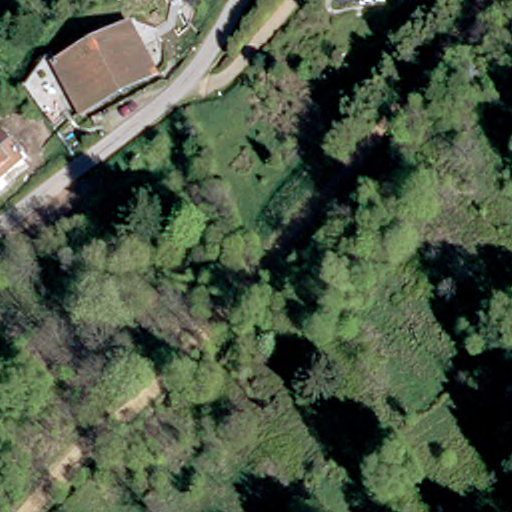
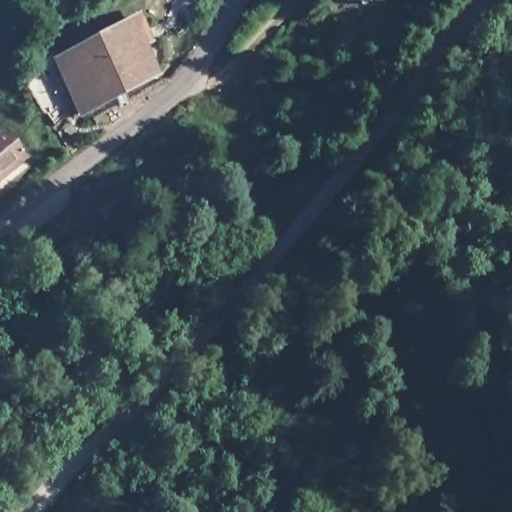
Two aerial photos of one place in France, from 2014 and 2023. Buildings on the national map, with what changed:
unchanged [(355,2),(354,0),(368,0),(355,2)]
unchanged [(131,20),(158,73),(108,98),(110,102),(85,114),(57,60),(131,20)]
unchanged [(0,172),(0,138),(13,161),(0,172)]

